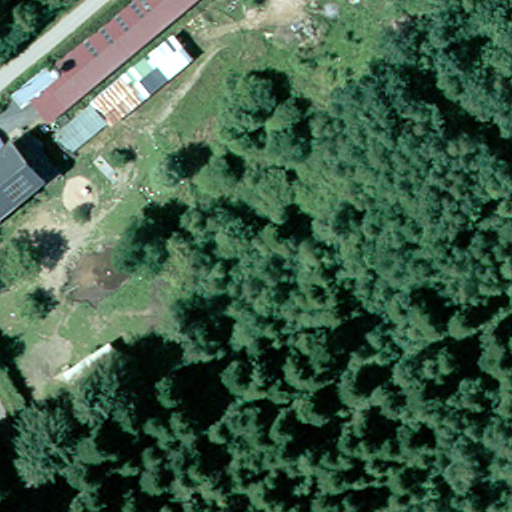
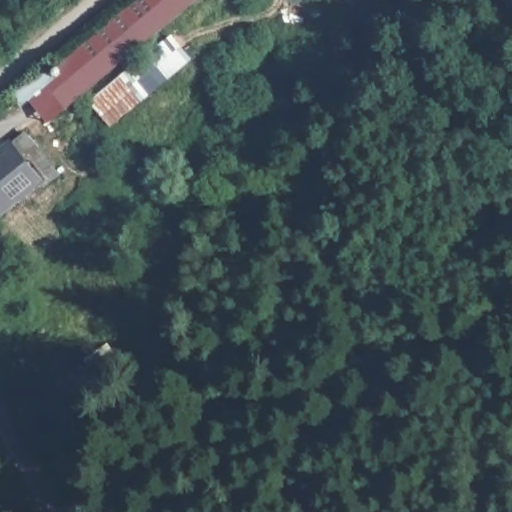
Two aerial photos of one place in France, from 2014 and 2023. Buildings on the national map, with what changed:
unchanged [(50,116),(35,98),(23,107),(13,92),(52,62),(62,75),(68,70),(60,60),(132,0),(194,0),(50,116)]
unchanged [(175,35),(193,61),(150,98),(134,78),(129,72),(175,35)]
unchanged [(55,129),(129,72),(150,98),(78,155),(55,129)]
unchanged [(50,173),(37,185),(0,216),(0,156),(21,138),(49,171),(50,173)]

